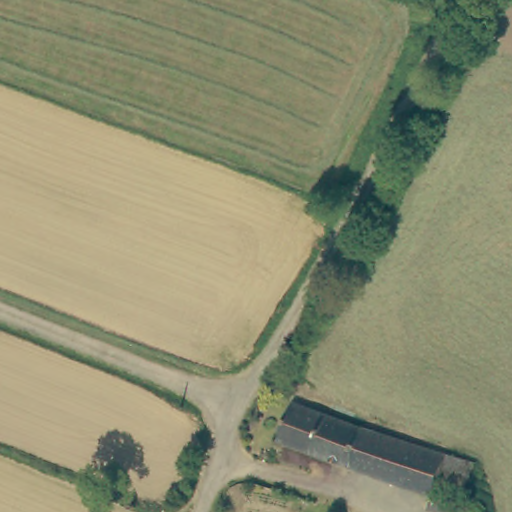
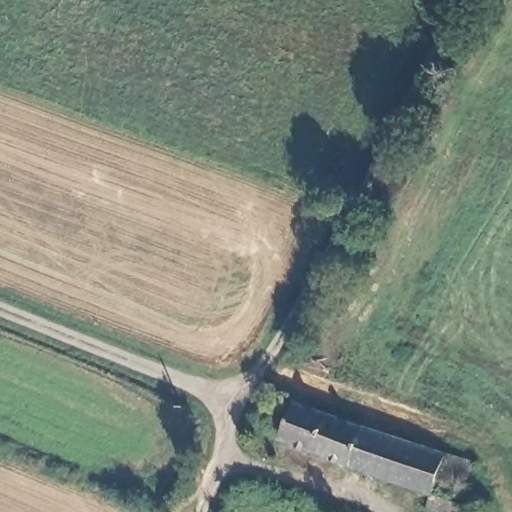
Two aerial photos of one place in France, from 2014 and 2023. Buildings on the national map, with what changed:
unchanged [(426,509),(431,494),(283,440),(297,402),(449,453),(450,452),(471,460),(462,489),(440,482),(435,496),(472,506),(470,512),(434,512),(431,511),(426,509)]

